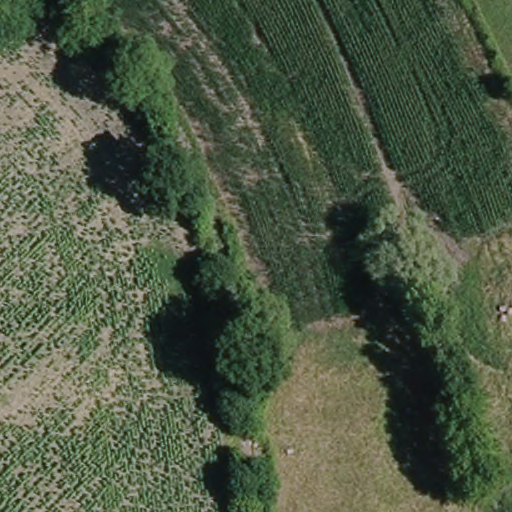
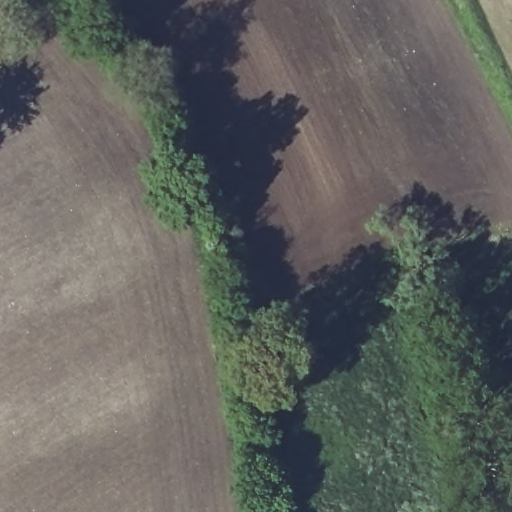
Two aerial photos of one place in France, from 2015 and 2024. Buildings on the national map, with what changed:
[]

